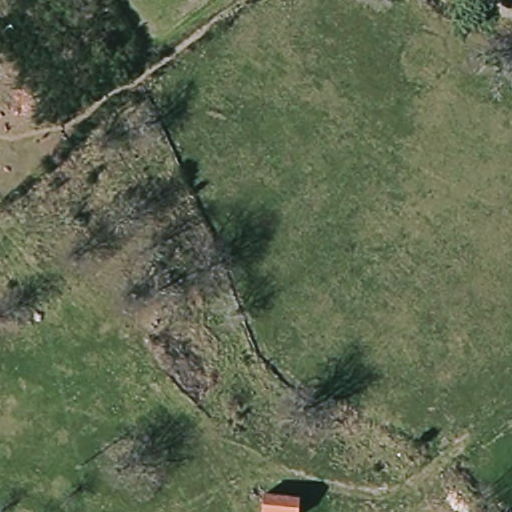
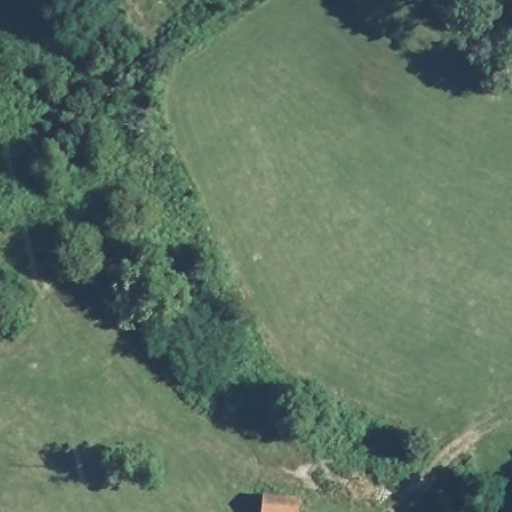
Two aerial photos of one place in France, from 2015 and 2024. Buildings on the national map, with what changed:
unchanged [(297,512),(260,512),(262,495),(286,495),(299,495),(297,512)]

